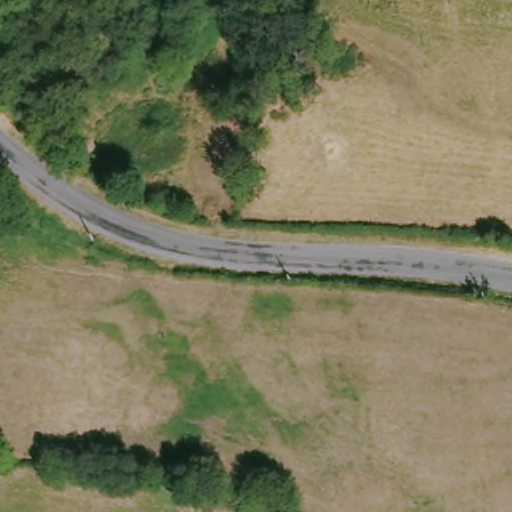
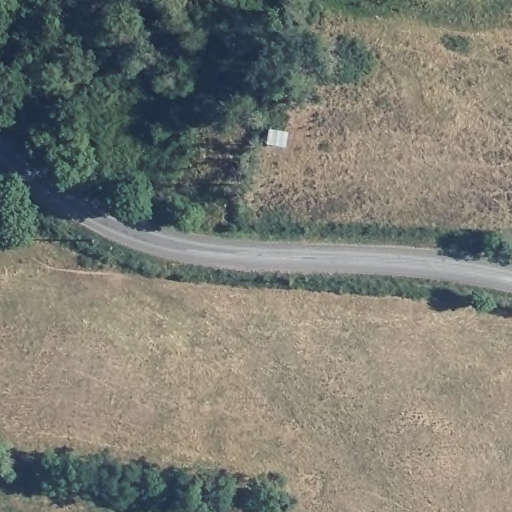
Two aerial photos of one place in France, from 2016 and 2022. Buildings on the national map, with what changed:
[]

